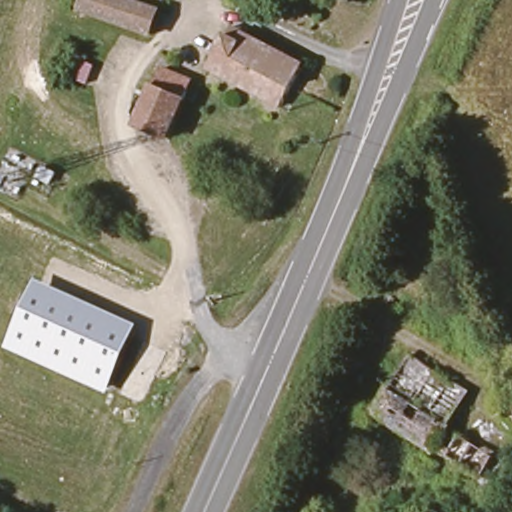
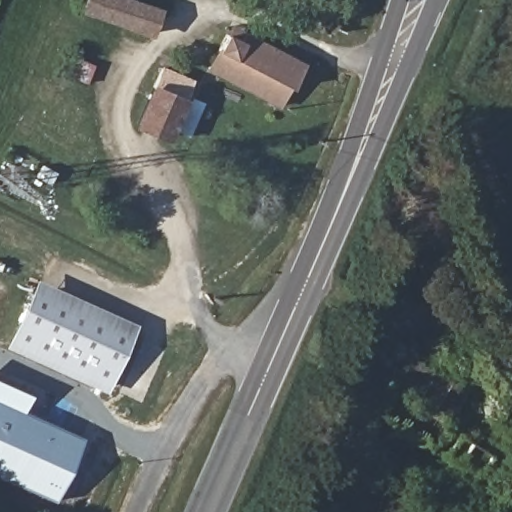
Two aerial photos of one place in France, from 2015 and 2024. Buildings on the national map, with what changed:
unchanged [(151,35),(84,9),(87,0),(129,0),(160,11),(151,35)]
unchanged [(286,109),(213,72),(233,38),(237,30),(251,37),(310,68),(286,109)]
unchanged [(140,125),(165,71),(196,82),(171,138),(140,125)]
unchanged [(137,324),(107,392),(6,348),(37,279),(137,324)]
new [(55,500),(0,476),(0,379),(32,393),(25,410),(85,437),(55,500)]

